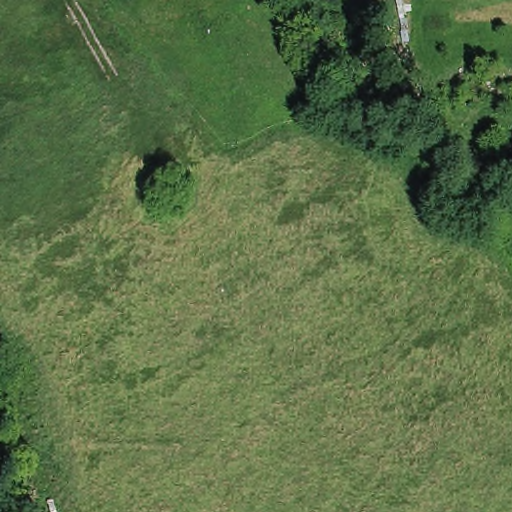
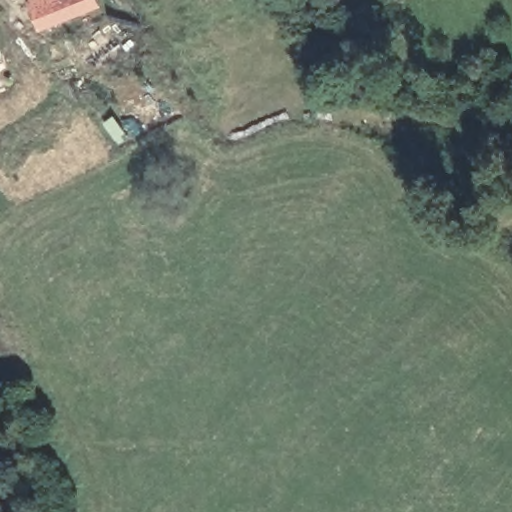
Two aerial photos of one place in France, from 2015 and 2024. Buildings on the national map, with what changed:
new [(104,0),(106,10),(44,33),(41,22),(33,5),(36,0),(104,0)]

